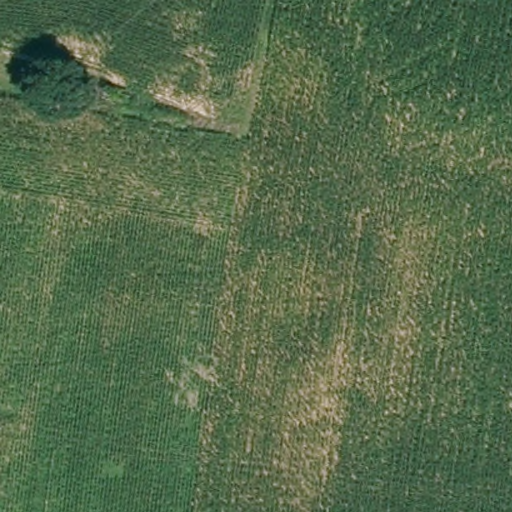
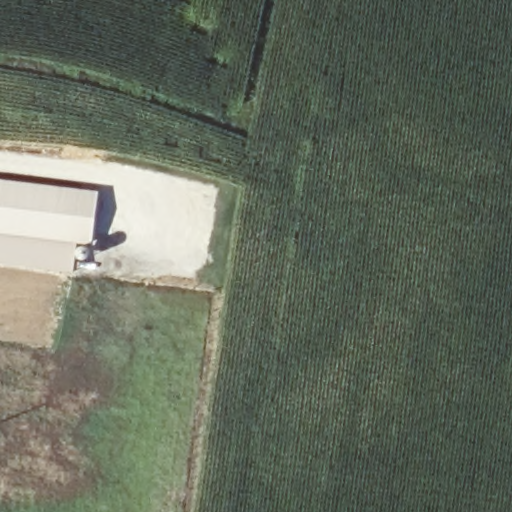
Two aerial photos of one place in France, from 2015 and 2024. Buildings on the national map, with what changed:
new [(93,241),(0,230),(0,178),(99,190),(93,241)]
new [(74,272),(0,263),(0,230),(78,240),(74,272)]

